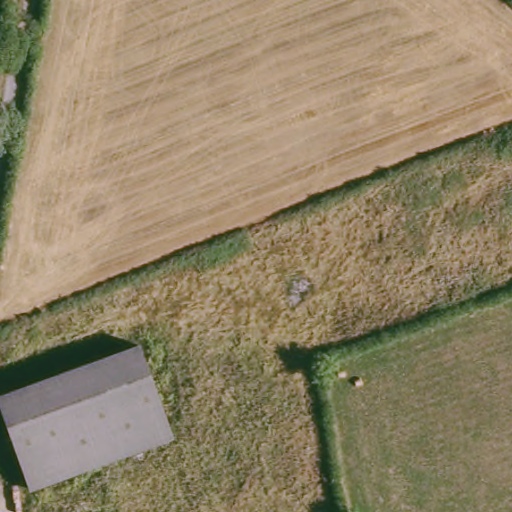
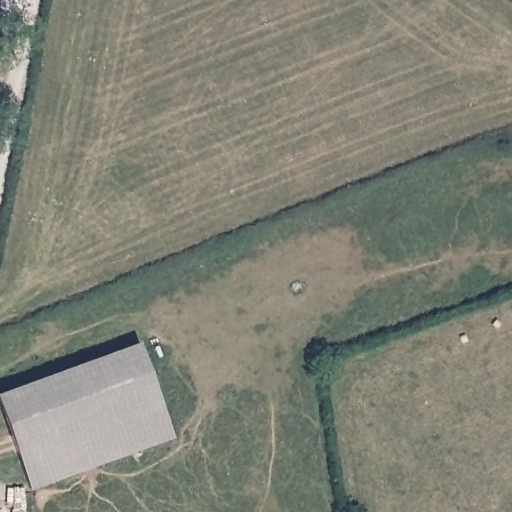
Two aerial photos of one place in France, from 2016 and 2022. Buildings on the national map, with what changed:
unchanged [(176,444),(39,493),(6,394),(144,345),(176,444)]

